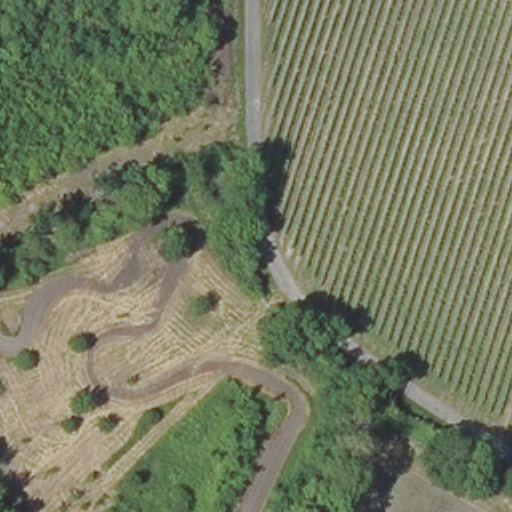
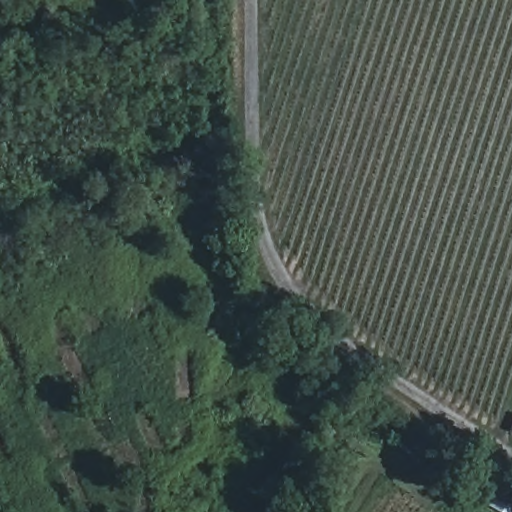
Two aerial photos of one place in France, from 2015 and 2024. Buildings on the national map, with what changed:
[]

